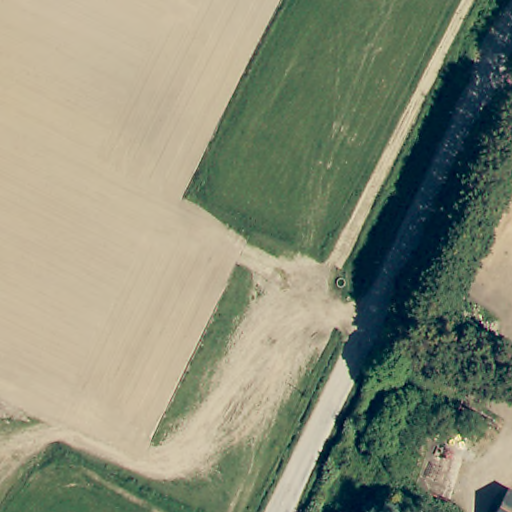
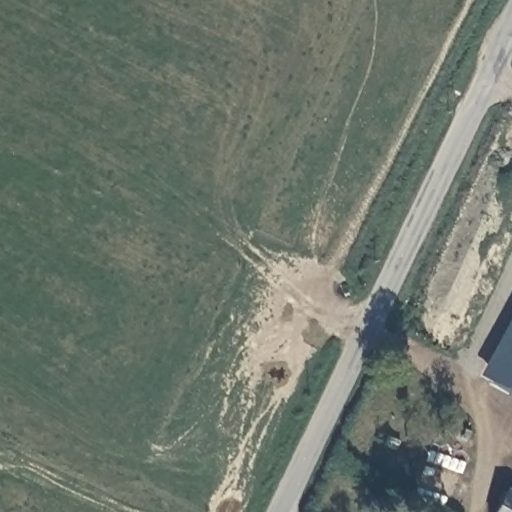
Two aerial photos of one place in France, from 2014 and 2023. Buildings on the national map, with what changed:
new [(477,377),(512,312),(512,398),(477,377)]
unchanged [(512,495),(512,512),(498,512),(508,493),(512,495)]

